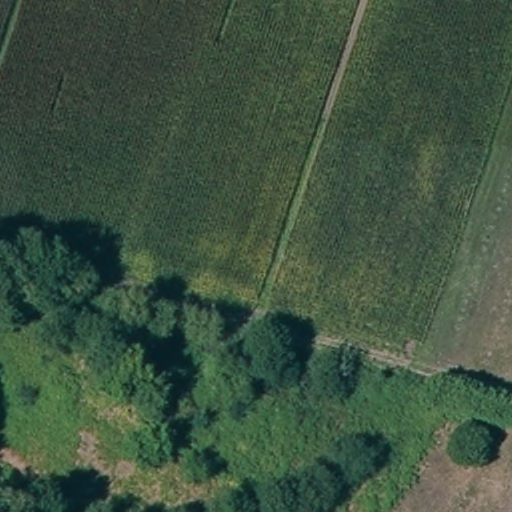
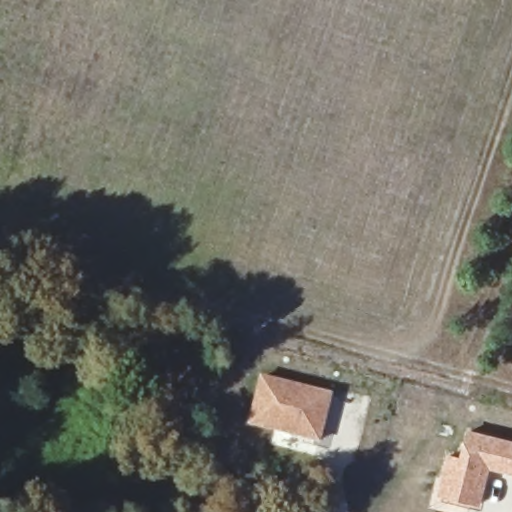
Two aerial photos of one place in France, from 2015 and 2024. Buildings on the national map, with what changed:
new [(334,392),(321,442),(246,424),(259,374),(334,392)]
new [(512,440),(512,473),(489,468),(479,507),(433,496),(444,454),(459,457),(466,430),(512,440)]
demolished [(335,510),(337,512),(334,512),(335,510)]

